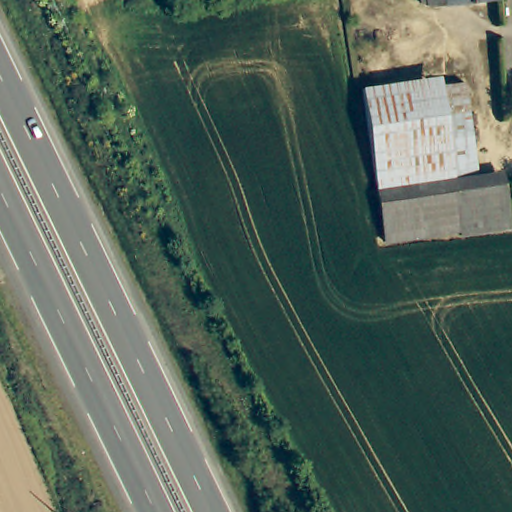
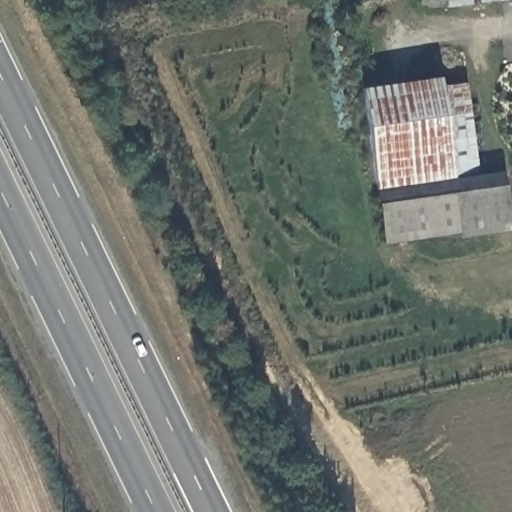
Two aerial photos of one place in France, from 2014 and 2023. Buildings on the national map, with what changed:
unchanged [(427,7),(425,0),(483,0),(427,7)]
unchanged [(368,88),(438,81),(439,88),(454,180),(380,190),(368,88)]
unchanged [(463,85),(477,177),(454,180),(439,88),(463,85)]
unchanged [(501,173),(509,229),(461,237),(460,231),(386,240),(380,190),(454,180),(477,177),(501,173)]

